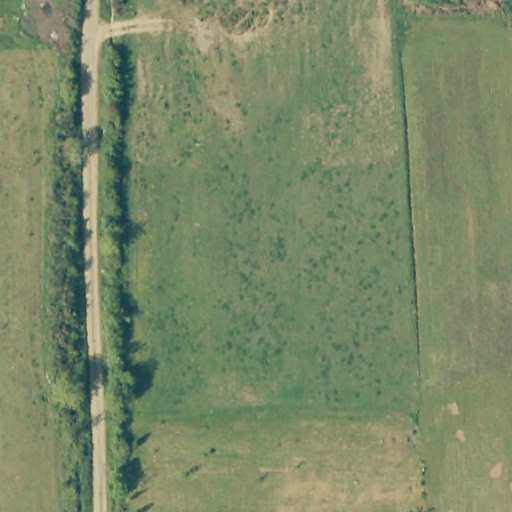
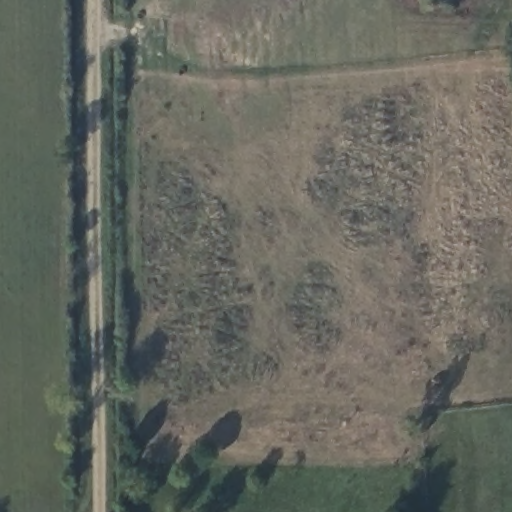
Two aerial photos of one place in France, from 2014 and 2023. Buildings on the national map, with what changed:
[]

